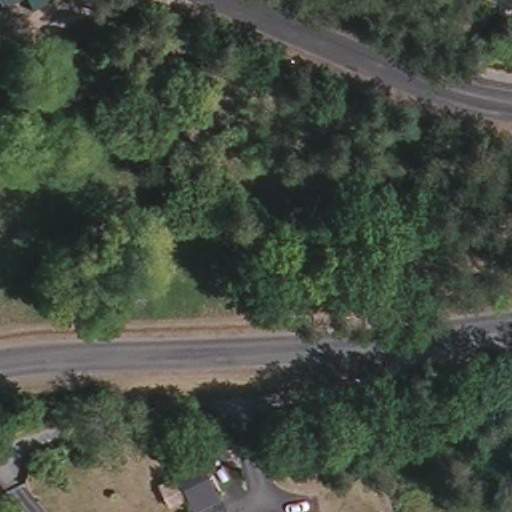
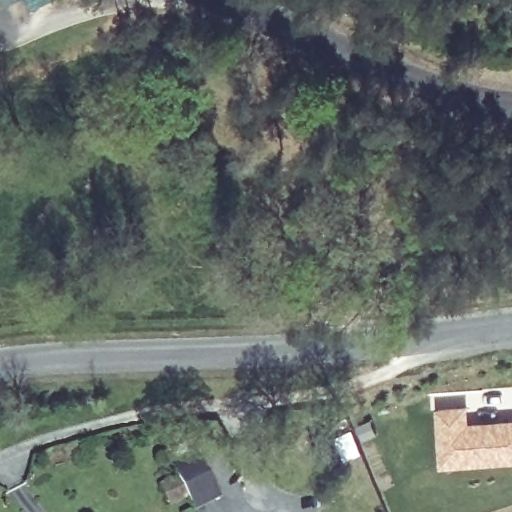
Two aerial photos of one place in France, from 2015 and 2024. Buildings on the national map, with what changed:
unchanged [(4,0),(13,0),(5,4),(4,0)]
unchanged [(28,0),(48,0),(32,8),(28,0)]
new [(467,404),(470,421),(512,418),(512,461),(440,467),(435,407),(467,404)]
unchanged [(157,488),(175,479),(169,466),(193,454),(216,499),(192,511),(187,503),(185,497),(167,506),(157,488)]

